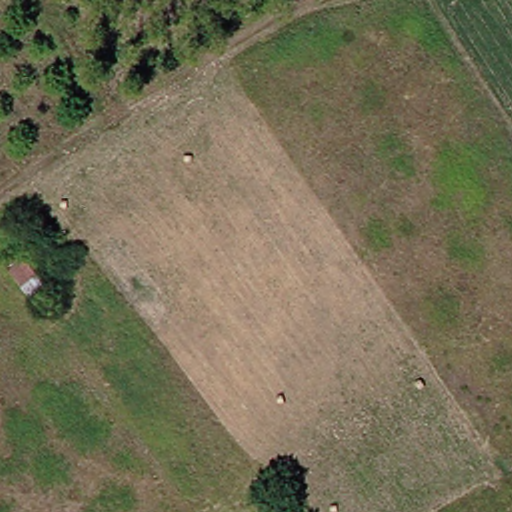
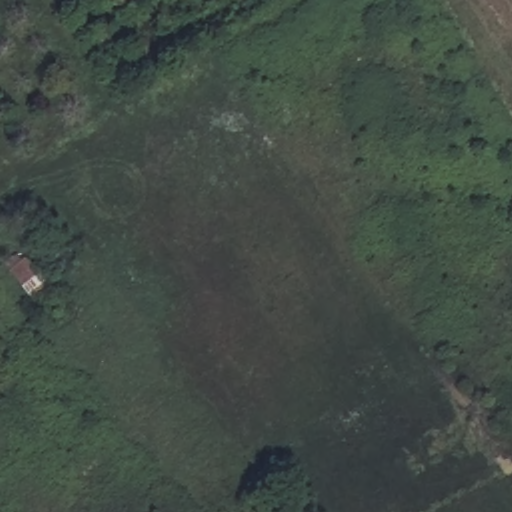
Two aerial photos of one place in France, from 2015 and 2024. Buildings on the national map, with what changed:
unchanged [(25,257),(49,287),(34,300),(9,270),(25,257)]

